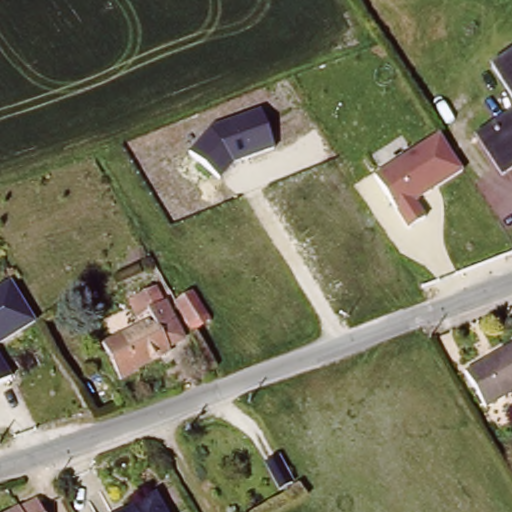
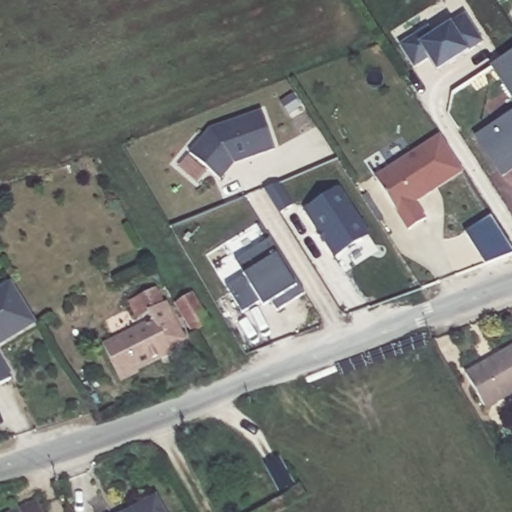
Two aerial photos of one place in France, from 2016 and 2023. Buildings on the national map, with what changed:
new [(427,26),(434,34),(451,23),(465,13),(482,41),(467,51),(435,71),(427,59),(414,67),(399,45),(427,26)]
unchanged [(491,65),(512,52),(512,99),(491,65)]
unchanged [(189,152),(210,129),(261,110),(275,149),(234,164),(220,179),(189,152)]
unchanged [(499,176),(474,135),(512,111),(512,168),(499,176)]
unchanged [(416,202),(427,222),(410,232),(373,175),(441,137),(460,173),(416,202)]
new [(339,189),(369,235),(333,257),(302,211),(339,189)]
new [(271,237),(305,293),(276,310),(271,301),(262,306),(259,300),(241,312),(225,285),(245,275),(236,261),(271,237)]
unchanged [(0,290),(12,283),(34,325),(0,345),(0,290)]
unchanged [(212,325),(192,335),(172,303),(192,292),(212,325)]
unchanged [(120,306),(146,293),(152,306),(155,305),(175,344),(159,353),(161,357),(135,370),(136,373),(117,382),(113,374),(107,376),(97,359),(102,356),(97,347),(110,341),(111,342),(143,327),(140,319),(129,324),(120,306)]
unchanged [(483,410),(462,373),(512,345),(512,393),(483,410)]
unchanged [(0,388),(0,358),(12,380),(0,388)]
unchanged [(299,481),(307,497),(279,512),(245,512),(278,494),(261,462),(277,453),(294,483),(299,481)]
unchanged [(157,512),(120,512),(149,496),(157,512)]
unchanged [(35,512),(29,512),(34,510),(35,512)]

